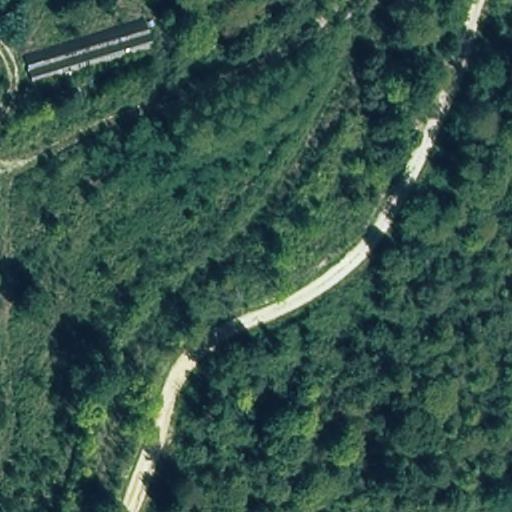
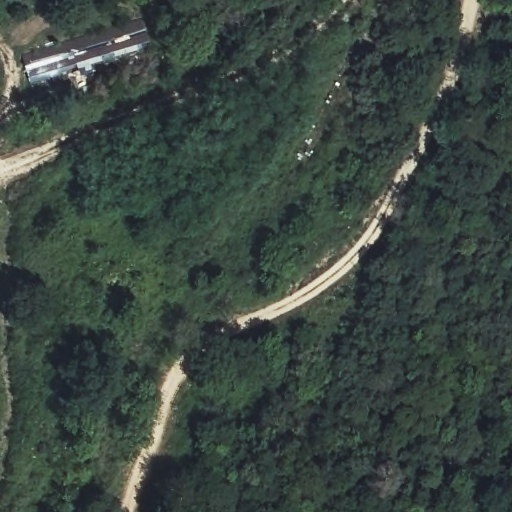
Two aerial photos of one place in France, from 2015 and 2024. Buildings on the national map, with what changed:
unchanged [(28,55),(147,19),(154,42),(34,79),(28,55)]

